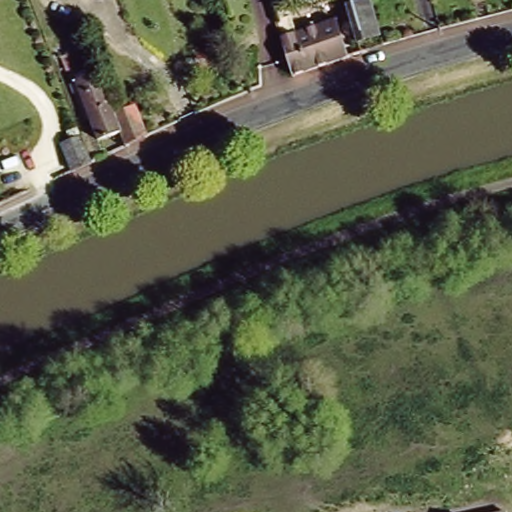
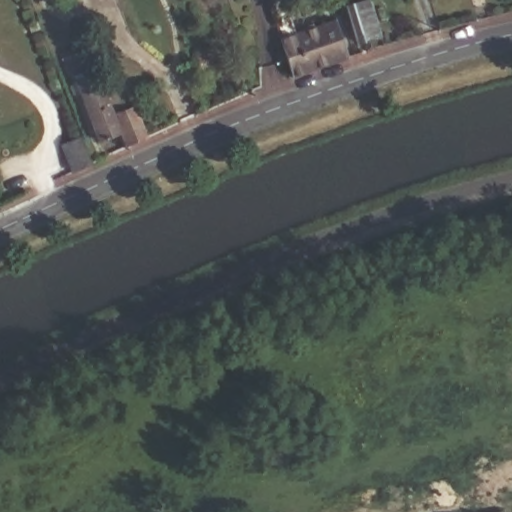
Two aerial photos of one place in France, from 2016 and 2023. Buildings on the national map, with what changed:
unchanged [(357,44),(347,7),(370,1),(379,38),(357,44)]
unchanged [(288,18),(293,32),(336,17),(349,54),(307,69),(291,74),(274,22),(288,18)]
unchanged [(88,46),(93,58),(68,68),(63,55),(88,46)]
unchanged [(210,47),(215,61),(201,66),(196,52),(210,47)]
unchanged [(147,132),(126,142),(121,127),(98,135),(76,74),(98,66),(115,110),(136,102),(147,132)]
unchanged [(71,172),(60,143),(83,134),(93,162),(71,172)]

